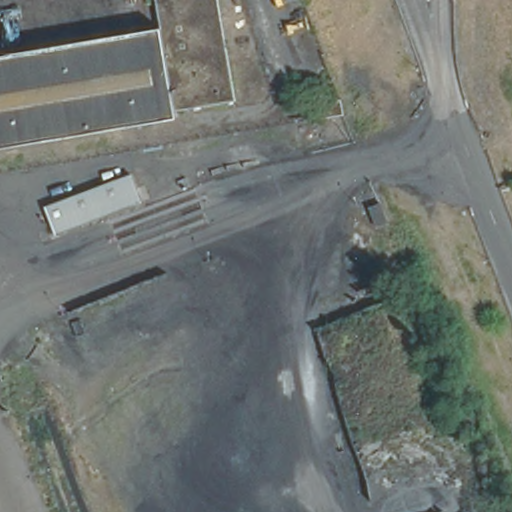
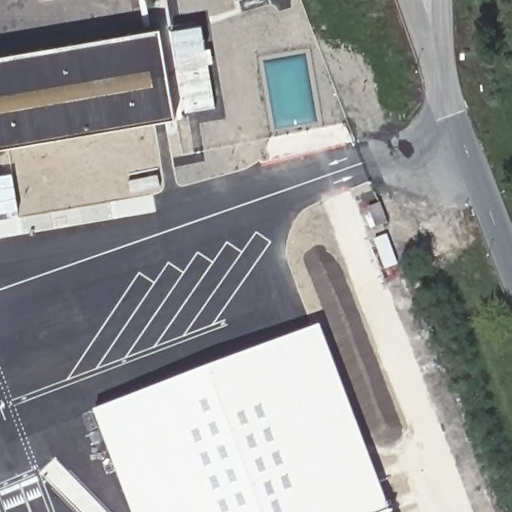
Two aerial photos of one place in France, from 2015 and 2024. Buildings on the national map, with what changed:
unchanged [(96,127),(43,137),(0,144),(0,51),(159,24),(155,0),(218,0),(234,97),(173,108),(174,114),(118,124),(119,132),(96,136),(96,127)]
unchanged [(324,123),(320,109),(338,106),(340,111),(344,120),(333,122),(324,123)]
unchanged [(45,148),(0,156),(0,144),(43,137),(45,148)]
unchanged [(124,178),(134,202),(51,234),(41,209),(124,178)]
unchanged [(370,232),(363,216),(379,210),(385,227),(370,232)]
new [(93,412),(319,327),(389,512),(131,512),(93,412)]

